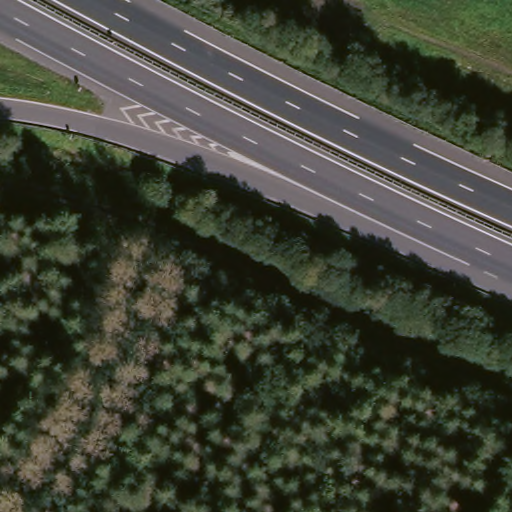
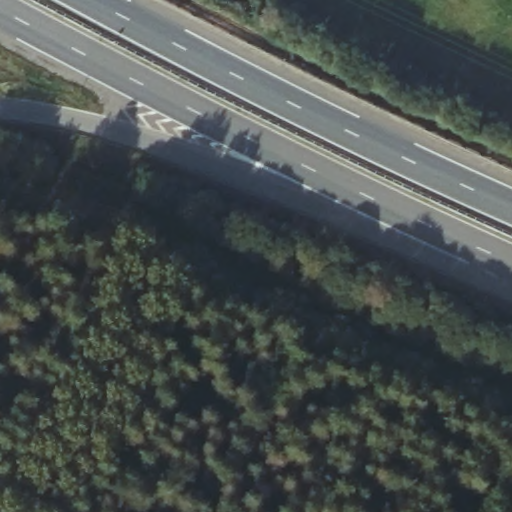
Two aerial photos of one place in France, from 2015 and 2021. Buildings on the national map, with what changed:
[]

